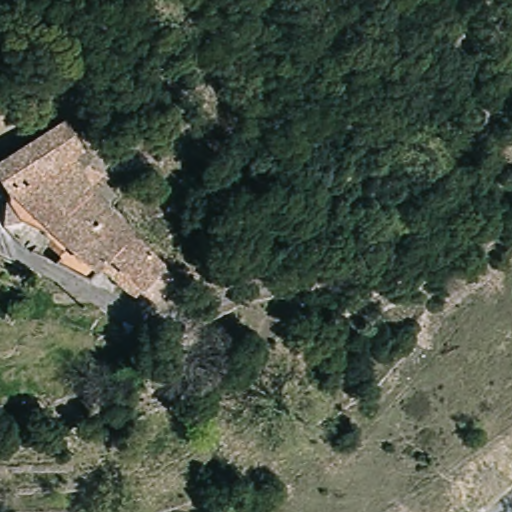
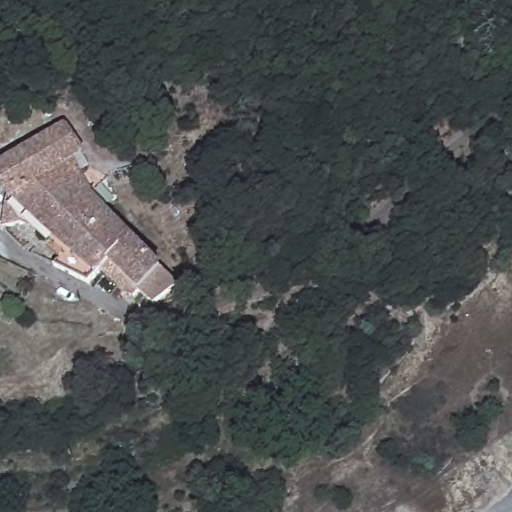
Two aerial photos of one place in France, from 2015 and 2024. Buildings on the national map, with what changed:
unchanged [(95,277),(89,285),(50,265),(63,244),(40,220),(4,226),(6,196),(0,186),(0,161),(60,122),(82,153),(73,159),(88,198),(103,184),(116,199),(101,207),(178,284),(151,307),(138,293),(130,299),(100,270),(95,277)]

